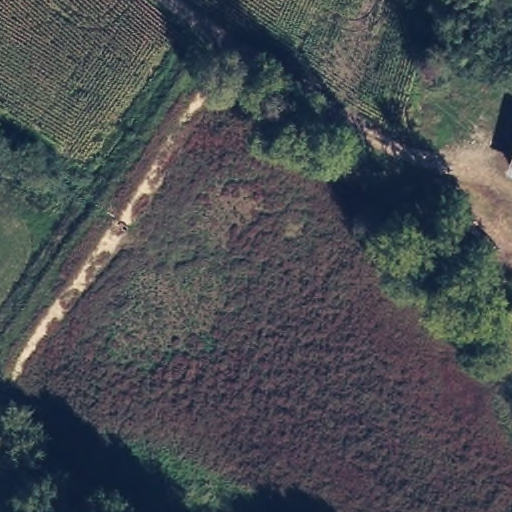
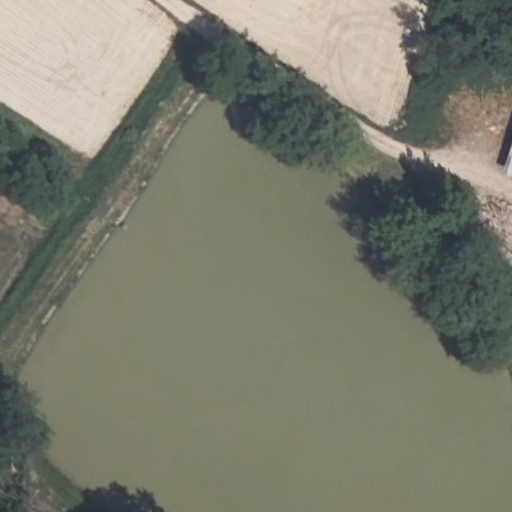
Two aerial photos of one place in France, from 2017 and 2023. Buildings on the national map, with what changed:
unchanged [(512,163),(512,173),(509,172),(512,163)]
unchanged [(30,379),(30,399),(20,398),(9,398),(10,379),(17,379),(30,379)]

